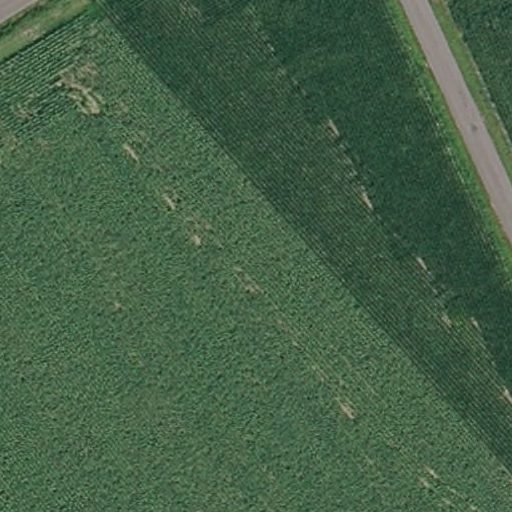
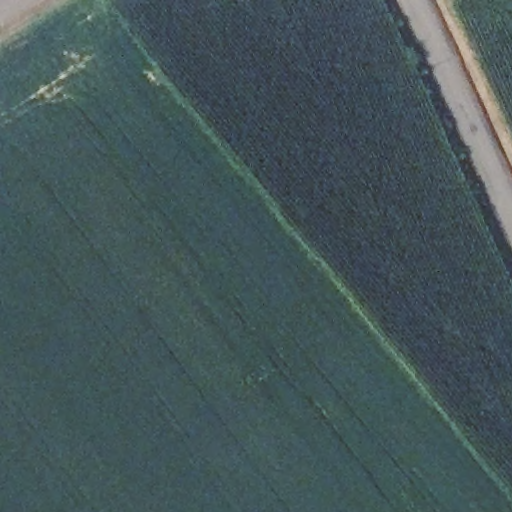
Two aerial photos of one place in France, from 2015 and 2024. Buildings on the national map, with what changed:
[]

